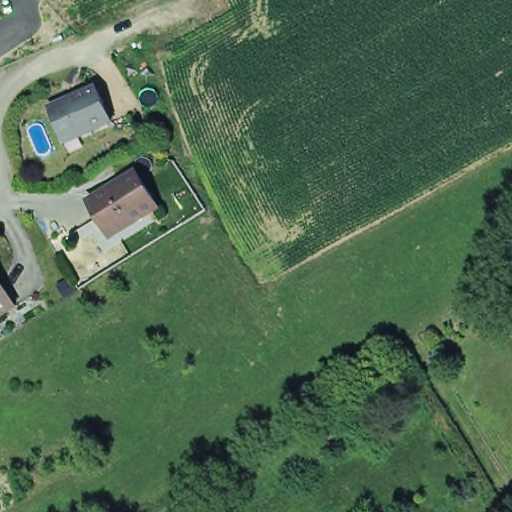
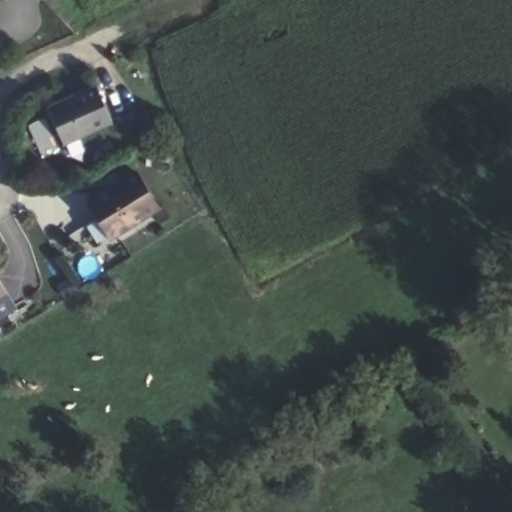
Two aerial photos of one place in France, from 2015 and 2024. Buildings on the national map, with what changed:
unchanged [(114,126),(68,147),(52,112),(74,102),(75,106),(92,98),(100,94),(105,104),(114,126)]
unchanged [(108,244),(92,218),(105,210),(94,194),(136,167),(157,199),(147,206),(152,215),(108,244)]
unchanged [(0,306),(0,291),(7,301),(0,306)]

